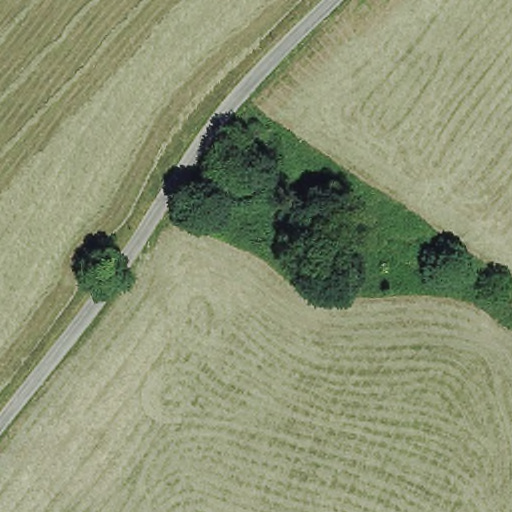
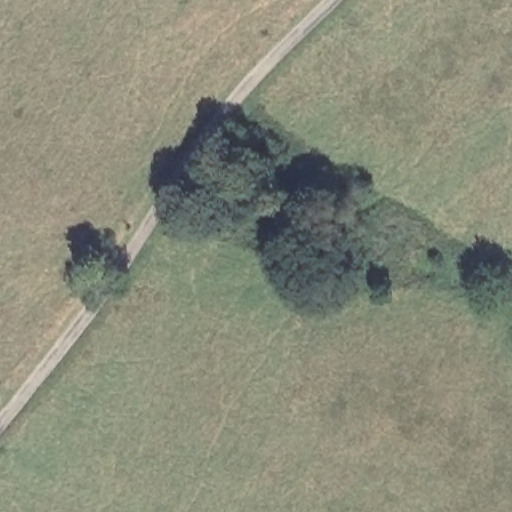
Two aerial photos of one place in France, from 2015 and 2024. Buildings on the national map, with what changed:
[]

